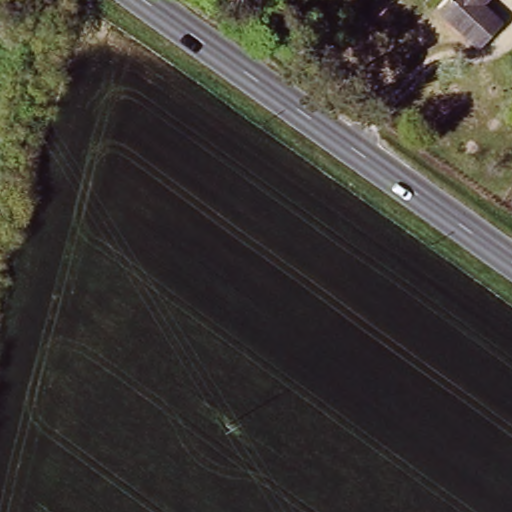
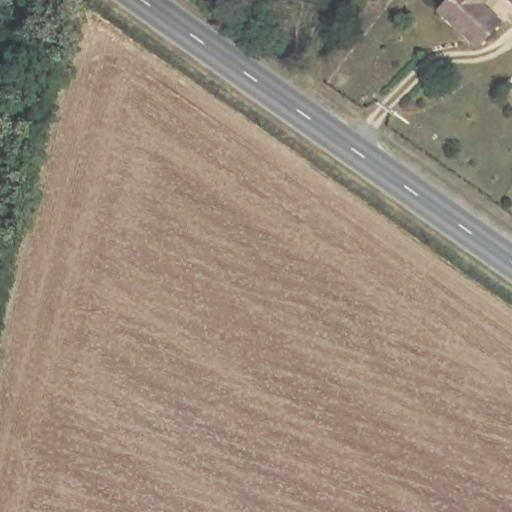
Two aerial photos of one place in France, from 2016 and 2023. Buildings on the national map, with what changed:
unchanged [(461,30),(437,14),(446,0),(473,0),(472,3),(479,10),(501,28),(484,46),(461,30)]

